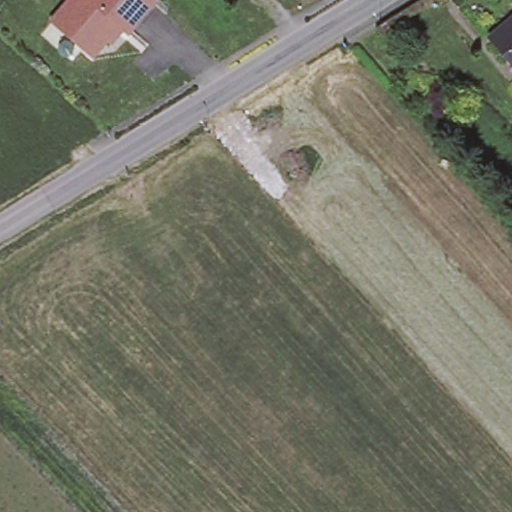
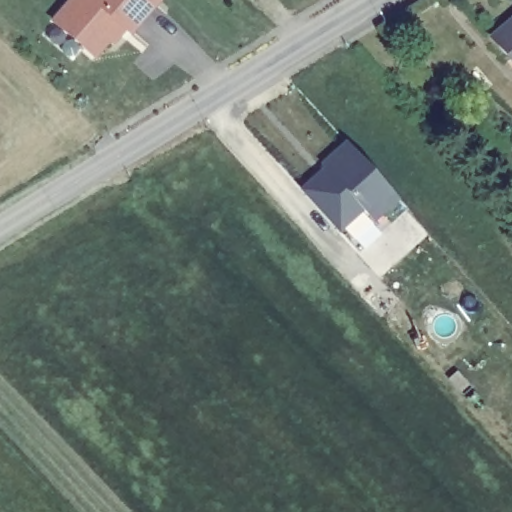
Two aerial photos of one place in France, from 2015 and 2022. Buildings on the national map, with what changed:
unchanged [(125,20),(101,51),(56,15),(68,0),(158,0),(135,27),(125,20)]
unchanged [(512,18),(512,62),(490,37),(512,18)]
new [(342,231),(337,235),(298,190),(322,167),(319,165),(345,142),(397,200),(405,208),(358,254),(342,231)]

